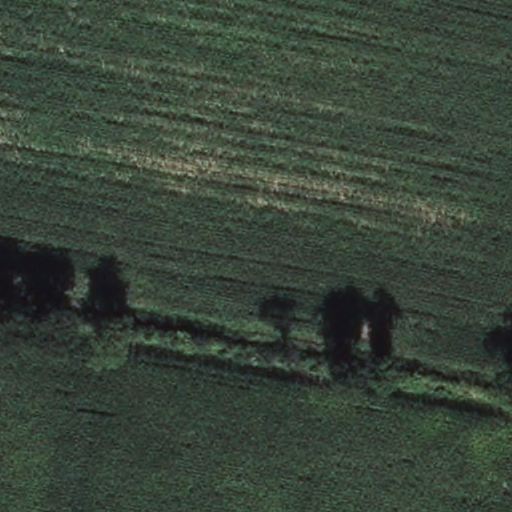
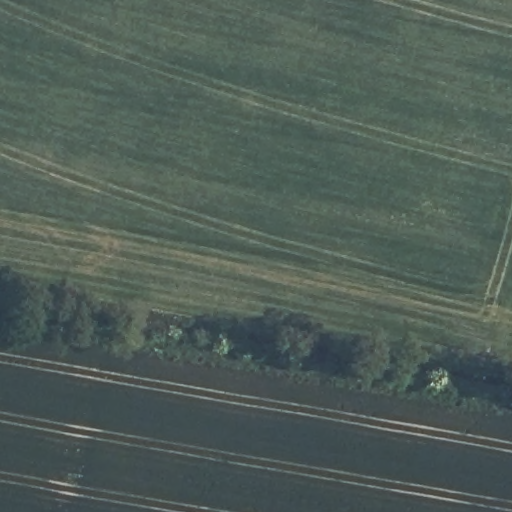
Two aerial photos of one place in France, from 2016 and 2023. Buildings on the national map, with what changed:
[]

